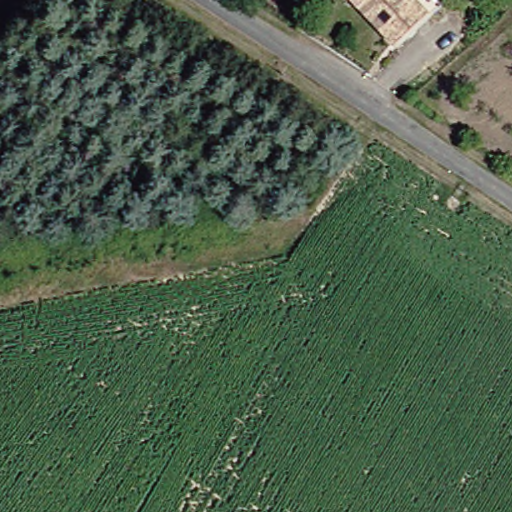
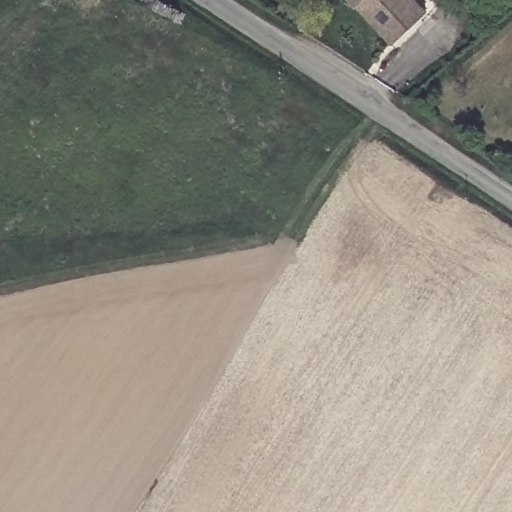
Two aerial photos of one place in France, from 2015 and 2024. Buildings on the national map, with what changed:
unchanged [(433,0),(428,5),(395,36),(359,0),(433,0)]

